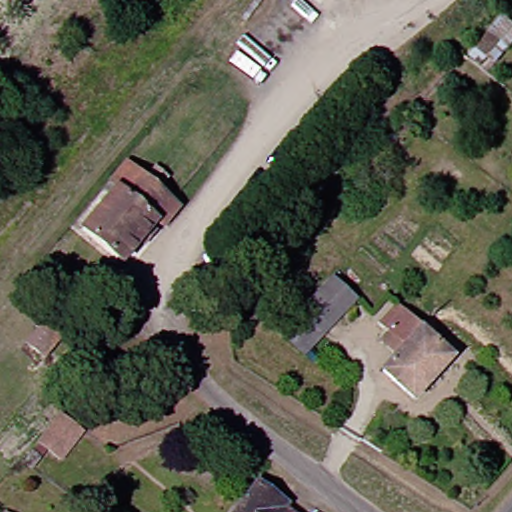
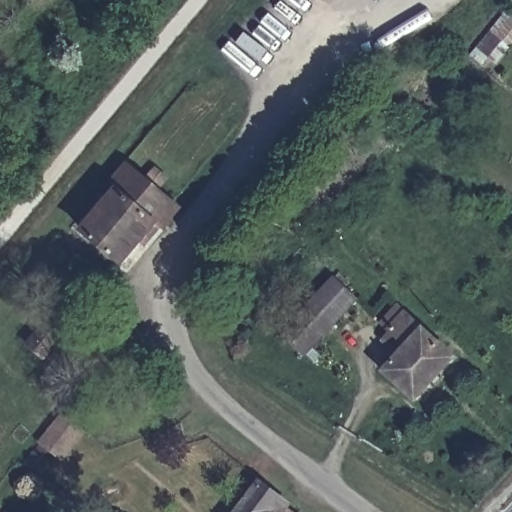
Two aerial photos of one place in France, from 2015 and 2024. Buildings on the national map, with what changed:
unchanged [(115,256),(79,225),(126,166),(163,194),(120,249),(115,256)]
unchanged [(297,357),(275,337),(324,275),(347,296),(297,357)]
unchanged [(443,354),(407,400),(373,371),(378,364),(359,350),(377,332),(393,312),(443,354)]
unchanged [(33,345),(47,329),(70,347),(56,365),(33,345)]
unchanged [(76,464),(62,451),(48,470),(36,460),(76,413),(92,426),(99,433),(80,458),(76,464)]
unchanged [(273,500),(270,505),(281,512),(223,512),(245,479),(273,500)]
unchanged [(6,512),(8,510),(11,512),(6,512)]

